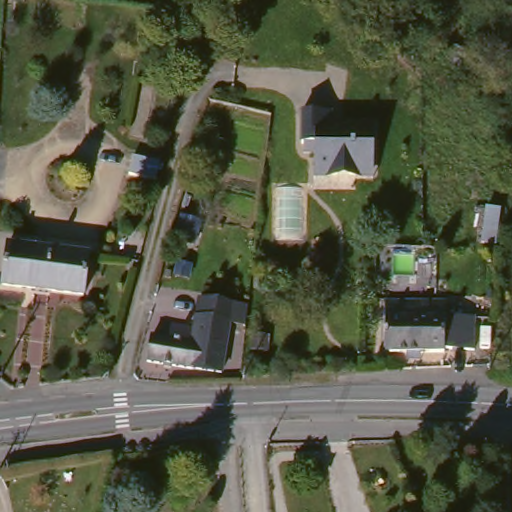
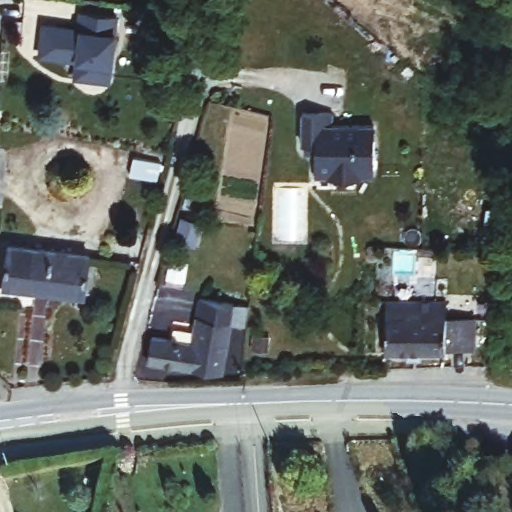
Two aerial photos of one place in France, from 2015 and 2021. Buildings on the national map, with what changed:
new [(117,14),(109,80),(75,76),(77,61),(40,55),(44,23),(80,27),(82,11),(117,14)]
unchanged [(355,177),(332,177),(332,181),(314,180),(315,171),(315,155),(302,155),(302,146),(300,146),(301,114),(331,115),(330,127),(374,128),(373,173),(373,182),(355,181),(355,177)]
unchanged [(130,176),(133,157),(160,162),(157,181),(130,176)]
unchanged [(177,219),(196,224),(190,246),(170,241),(177,219)]
unchanged [(3,287),(9,245),(90,256),(84,298),(3,287)]
unchanged [(383,302),(444,303),(444,319),(474,320),(473,351),(443,351),(443,355),(383,354),(383,302)]
unchanged [(192,351),(196,324),(200,305),(247,313),(247,315),(245,333),(230,330),(222,380),(193,376),(148,369),(151,345),(192,351)]

